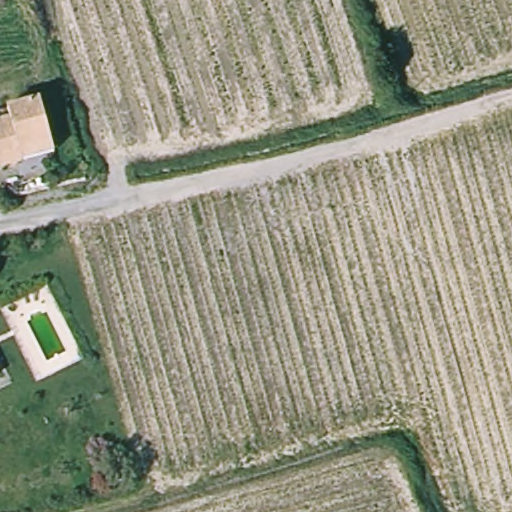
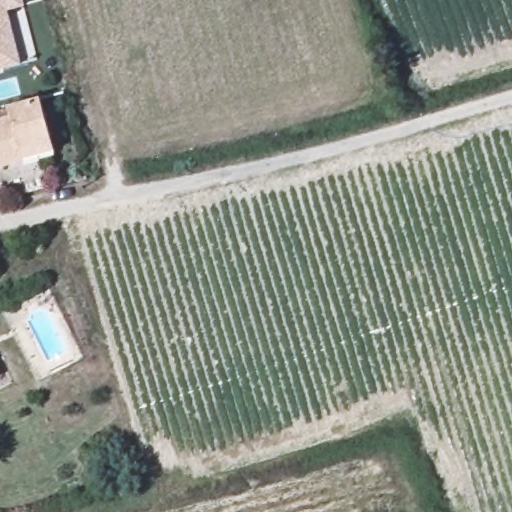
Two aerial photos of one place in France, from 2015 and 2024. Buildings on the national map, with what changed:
new [(0,0),(17,0),(5,4),(17,44),(21,57),(0,64),(0,0)]
unchanged [(0,170),(0,123),(13,119),(10,108),(45,98),(61,151),(0,170)]

